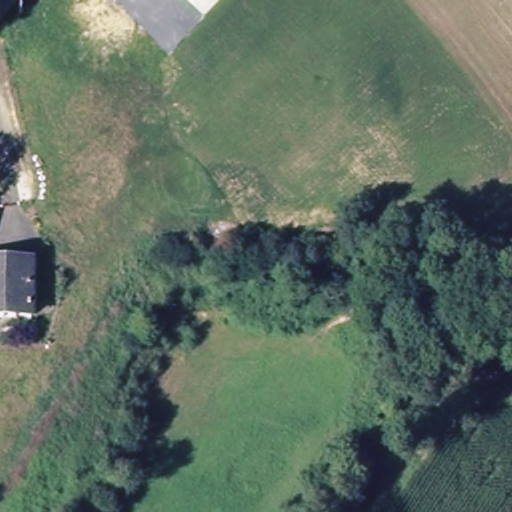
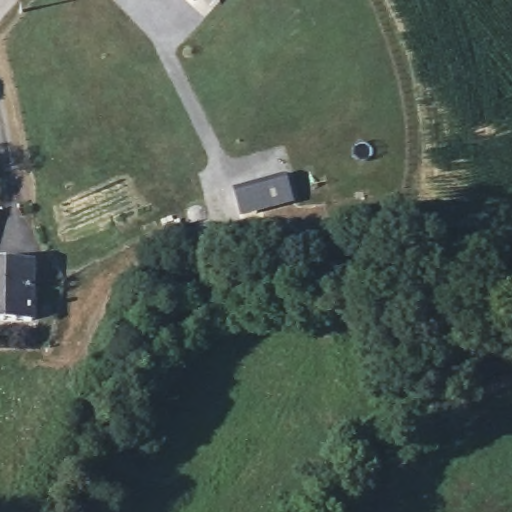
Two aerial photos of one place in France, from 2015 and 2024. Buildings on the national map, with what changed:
unchanged [(188,0),(197,0),(192,5),(188,0)]
new [(286,180),(293,205),(242,219),(235,194),(286,180)]
unchanged [(28,265),(32,295),(0,295),(0,267),(28,265)]
unchanged [(32,295),(33,322),(0,324),(0,295),(32,295)]

